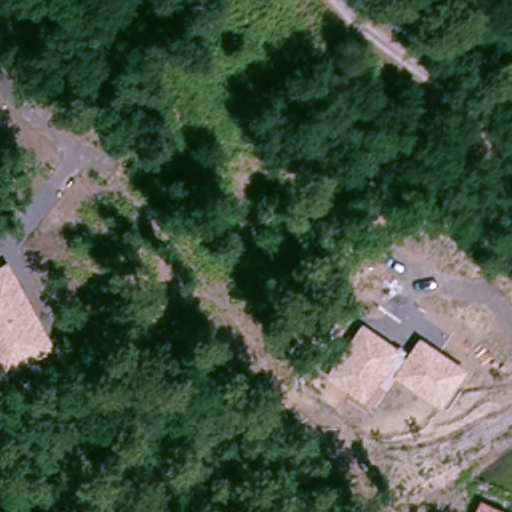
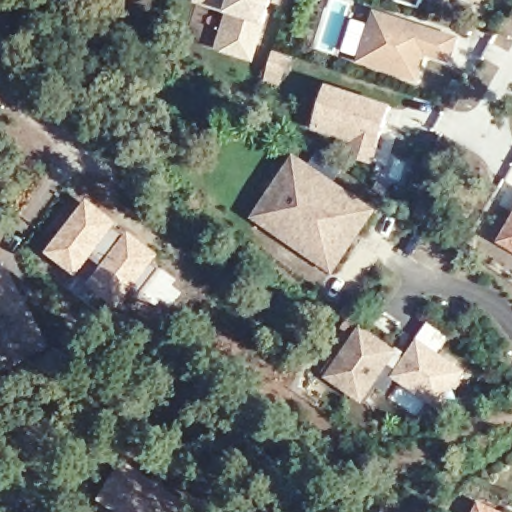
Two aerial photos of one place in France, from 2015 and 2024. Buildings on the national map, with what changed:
new [(254,61),(215,49),(227,12),(194,3),(194,0),(273,0),(266,26),(254,61)]
new [(475,0),(484,0),(483,3),(475,0)]
new [(461,38),(453,64),(428,56),(420,82),(358,62),(376,10),(461,38)]
new [(373,163),(348,155),(352,142),(314,129),(329,84),(394,106),(373,163)]
new [(337,268),(271,223),(260,215),(300,157),(311,165),(376,210),(360,234),(356,240),(337,268)]
new [(88,198),(120,224),(77,278),(45,254),(88,198)]
new [(499,242),(512,218),(512,249),(499,242)]
new [(129,230),(161,255),(119,309),(87,287),(129,230)]
unchanged [(2,375),(0,371),(0,265),(7,261),(55,346),(2,375)]
unchanged [(395,380),(387,391),(376,385),(364,403),(325,377),(362,324),(407,354),(417,339),(468,369),(442,408),(395,380)]
new [(194,503),(187,512),(118,512),(99,499),(126,460),(194,503)]
unchanged [(503,512),(474,512),(479,501),(503,512)]

